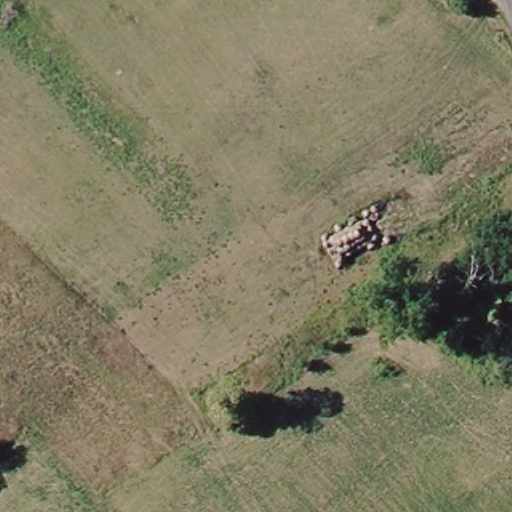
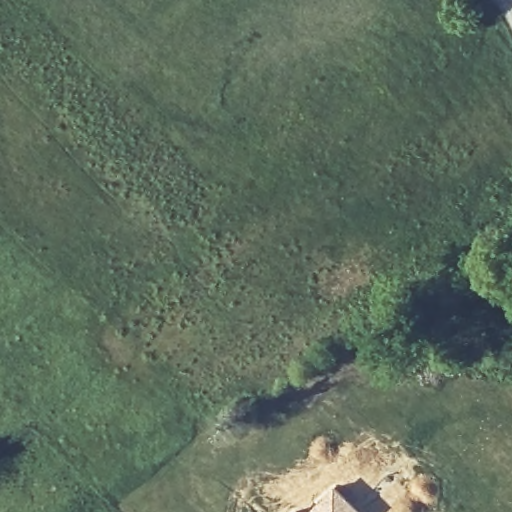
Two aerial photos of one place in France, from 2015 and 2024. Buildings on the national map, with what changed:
new [(334,483),(363,512),(305,512),(334,483)]
new [(296,507),(300,512),(290,512),(296,507)]

